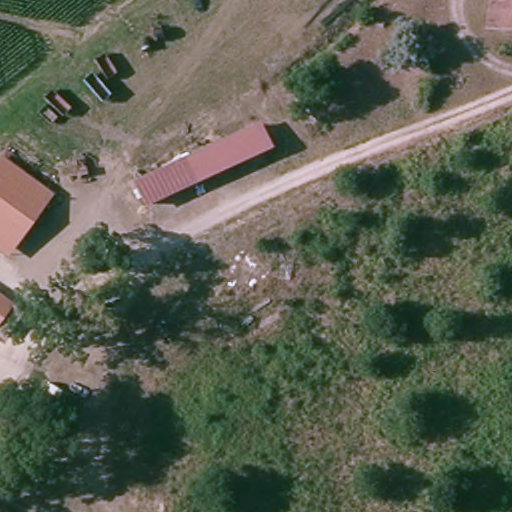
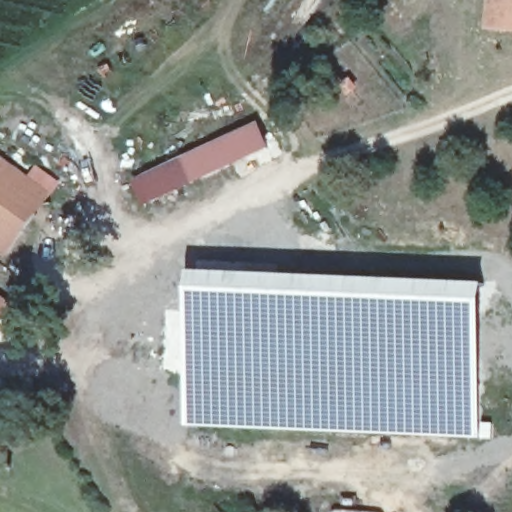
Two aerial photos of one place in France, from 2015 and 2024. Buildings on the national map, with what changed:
unchanged [(495,0),(512,0),(512,32),(493,32),(495,16),(495,0)]
new [(132,179),(258,120),(273,147),(145,207),(146,208),(129,215),(111,175),(126,168),(132,179)]
demolished [(192,159),(211,146),(272,122),(277,145),(226,173),(201,183),(192,159)]
new [(0,156),(54,194),(7,257),(0,252),(0,156)]
new [(185,426),(191,271),(487,284),(480,438),(185,426)]
unchanged [(0,318),(0,292),(12,299),(0,318)]

